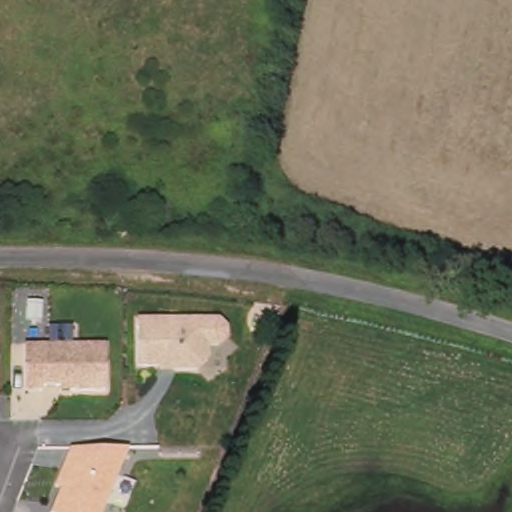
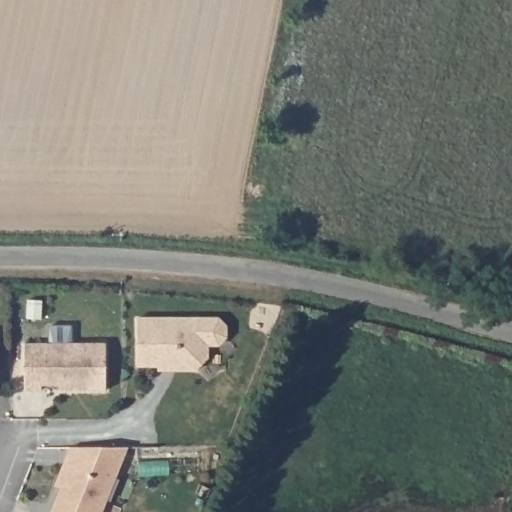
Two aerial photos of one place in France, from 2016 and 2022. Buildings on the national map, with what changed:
unchanged [(229,320),(229,355),(217,357),(223,368),(209,380),(200,373),(158,373),(156,370),(136,370),(136,320),(229,320)]
unchanged [(106,346),(106,392),(70,392),(70,387),(42,387),(42,392),(25,392),(24,346),(106,346)]
unchanged [(52,512),(60,491),(55,488),(64,466),(70,450),(128,450),(103,512),(52,512)]

